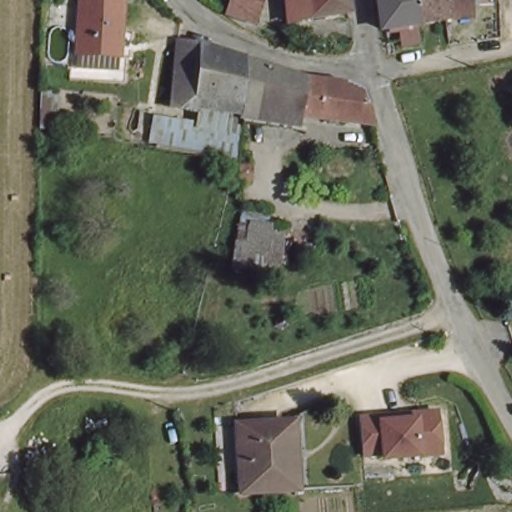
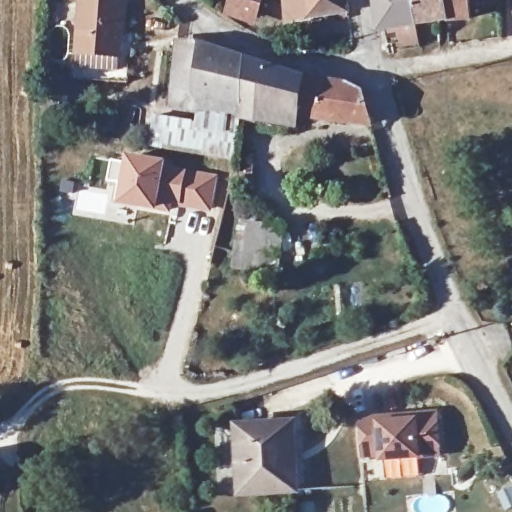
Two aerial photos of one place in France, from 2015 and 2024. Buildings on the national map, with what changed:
unchanged [(120,51),(121,69),(84,69),(80,0),(122,0),(125,51),(120,51)]
unchanged [(223,19),(227,0),(263,0),(259,35),(223,19)]
unchanged [(348,0),(353,19),(289,30),(282,0),(348,0)]
unchanged [(411,29),(374,36),(367,0),(441,0),(443,20),(411,29)]
unchanged [(463,0),(464,16),(443,20),(441,0),(463,0)]
unchanged [(166,116),(164,72),(228,69),(230,72),(233,115),(166,116)]
unchanged [(233,115),(230,72),(286,78),(285,102),(274,101),(274,115),(233,115)]
unchanged [(274,101),(285,102),(286,78),(306,80),(340,79),(343,115),(274,115),(274,101)]
unchanged [(361,79),(380,115),(343,115),(340,79),(361,79)]
new [(109,158),(124,161),(126,152),(168,160),(168,166),(162,202),(171,204),(168,214),(113,204),(118,184),(105,181),(109,158)]
new [(168,166),(218,175),(212,212),(179,206),(171,204),(162,202),(168,166)]
unchanged [(286,219),(279,268),(236,264),(243,213),(286,219)]
unchanged [(376,418),(412,418),(411,412),(442,412),(442,457),(416,459),(378,459),(359,456),(356,415),(376,418)]
unchanged [(292,426),(292,486),(239,484),(240,423),(292,426)]

